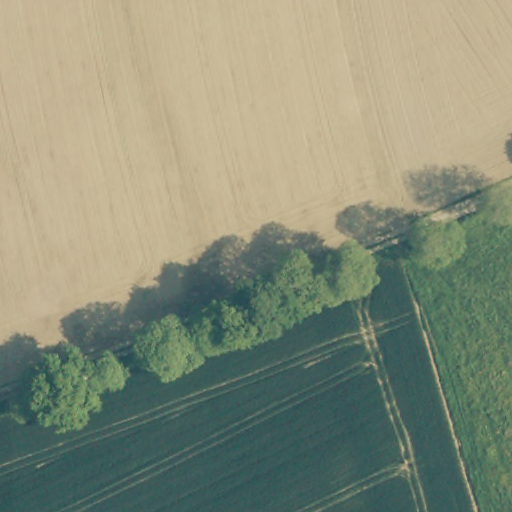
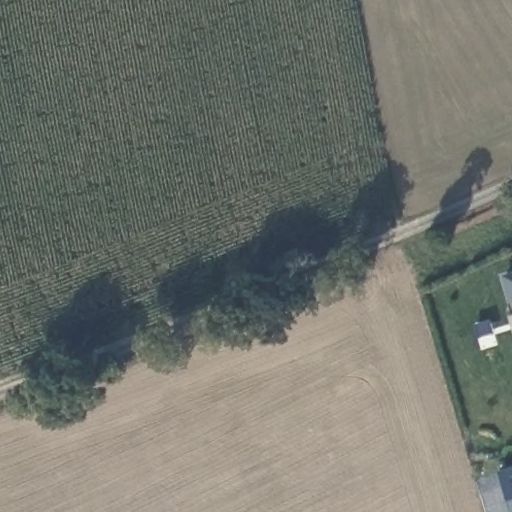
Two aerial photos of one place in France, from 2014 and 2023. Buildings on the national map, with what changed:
new [(509,302),(501,276),(512,273),(512,302),(509,302)]
new [(512,468),(512,512),(511,512),(499,472),(512,468)]

